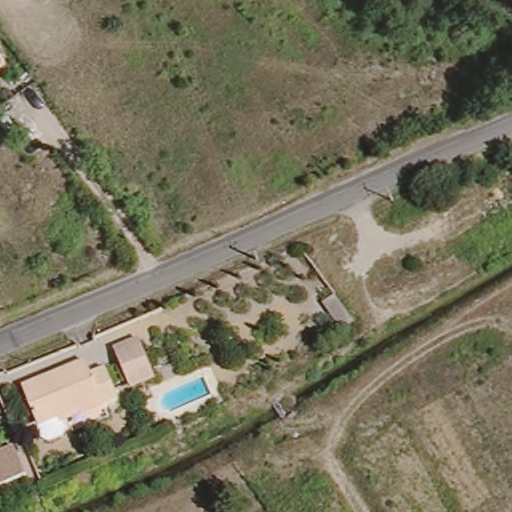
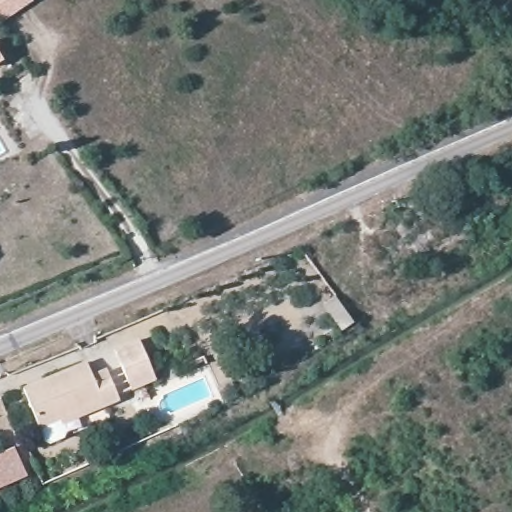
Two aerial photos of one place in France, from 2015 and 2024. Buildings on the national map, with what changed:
new [(2,24),(0,21),(0,0),(33,0),(34,1),(2,24)]
unchanged [(135,336),(154,375),(128,387),(109,350),(135,336)]
unchanged [(14,392),(82,365),(87,376),(100,370),(115,402),(103,408),(99,403),(31,431),(14,392)]
unchanged [(25,480),(0,489),(0,454),(13,449),(25,480)]

